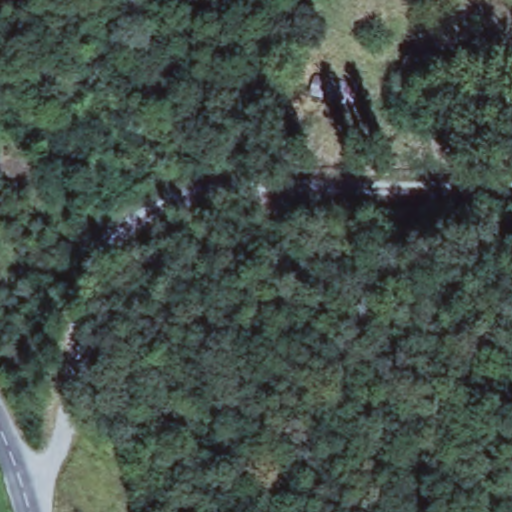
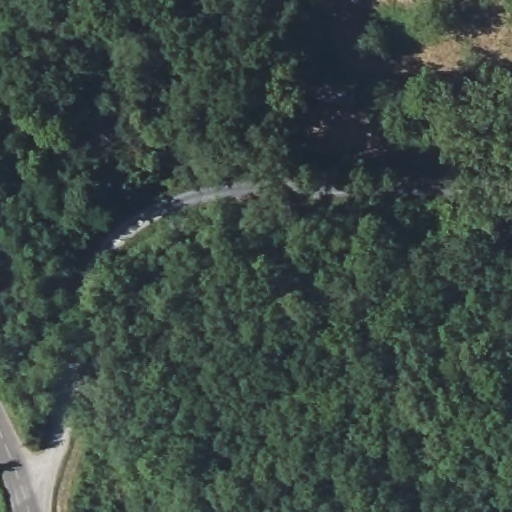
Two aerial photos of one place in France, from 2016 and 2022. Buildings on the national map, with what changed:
unchanged [(321,80),(356,80),(354,107),(317,102),(321,80)]

